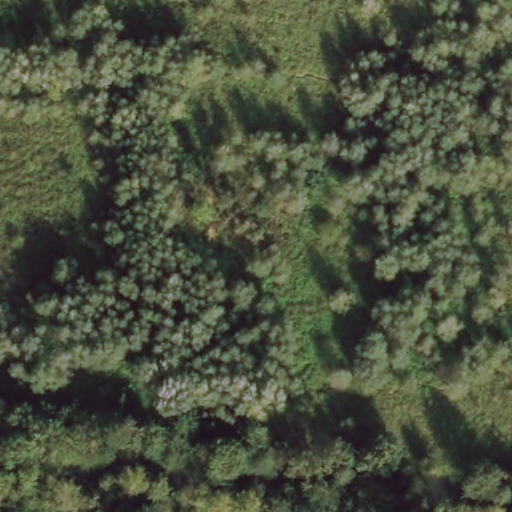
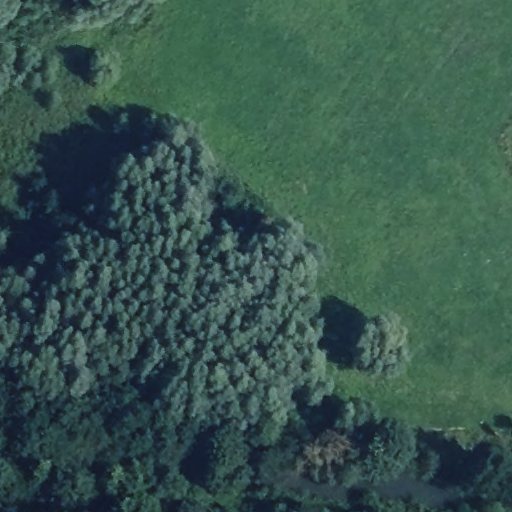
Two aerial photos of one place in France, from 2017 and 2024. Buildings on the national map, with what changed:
[]

